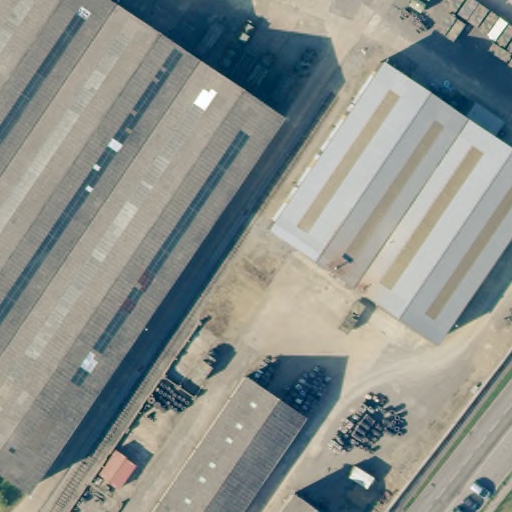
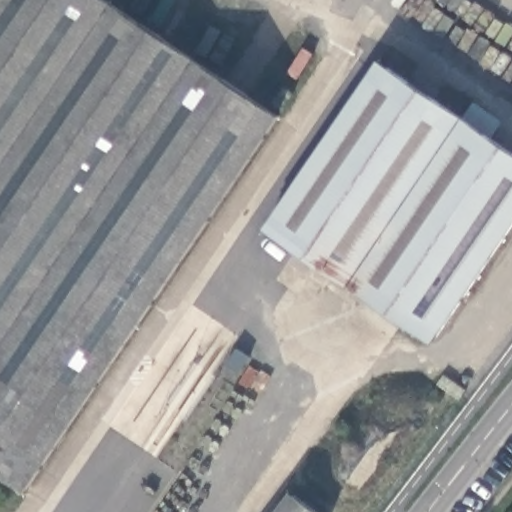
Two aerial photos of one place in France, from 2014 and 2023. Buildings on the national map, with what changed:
unchanged [(24,492),(0,476),(0,0),(100,0),(276,119),(24,492)]
unchanged [(378,66),(512,155),(512,227),(433,343),(267,232),(378,66)]
demolished [(302,419),(238,512),(154,512),(245,380),(302,419)]
unchanged [(315,512),(271,512),(287,492),(315,512)]

